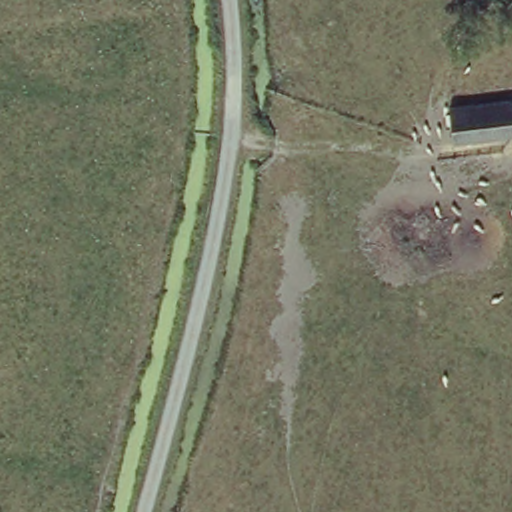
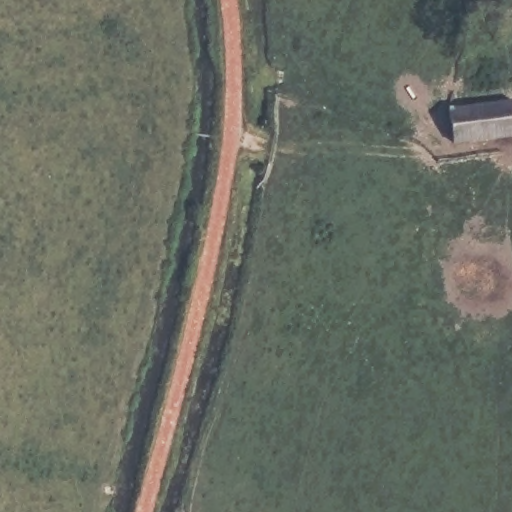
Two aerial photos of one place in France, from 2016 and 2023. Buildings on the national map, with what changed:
unchanged [(512,134),(452,143),(448,105),(511,96),(512,115),(512,134)]

